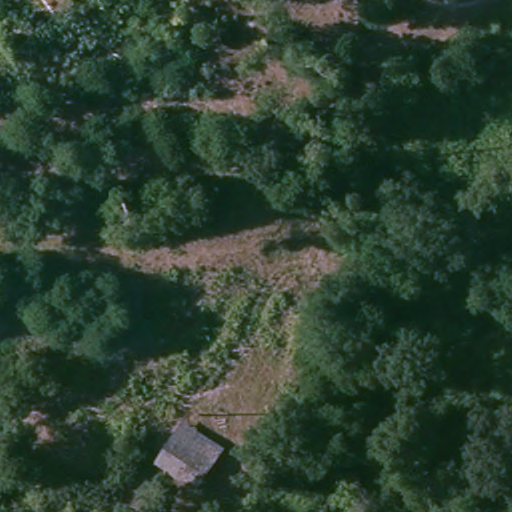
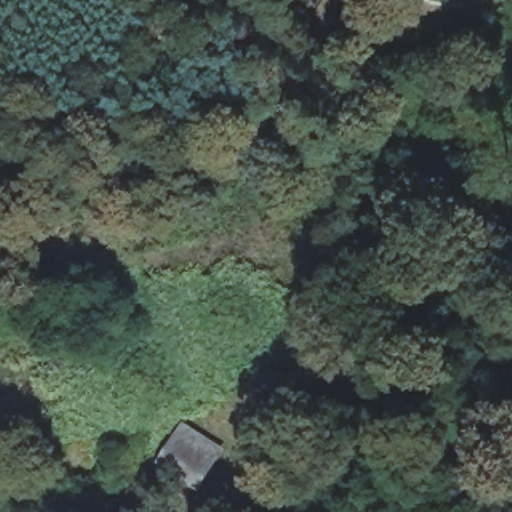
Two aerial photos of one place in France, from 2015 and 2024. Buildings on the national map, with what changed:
unchanged [(165,466),(182,424),(224,442),(208,483),(198,480),(165,466)]

